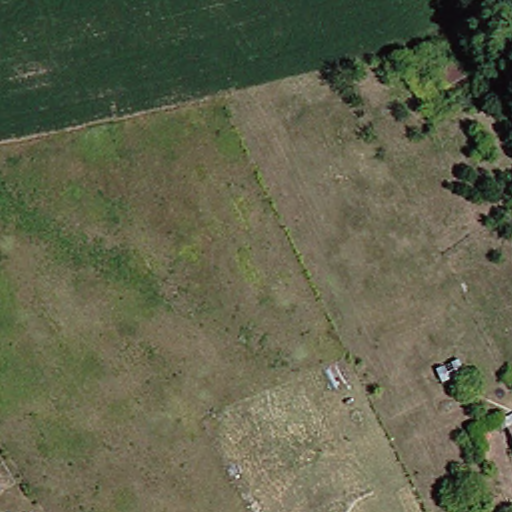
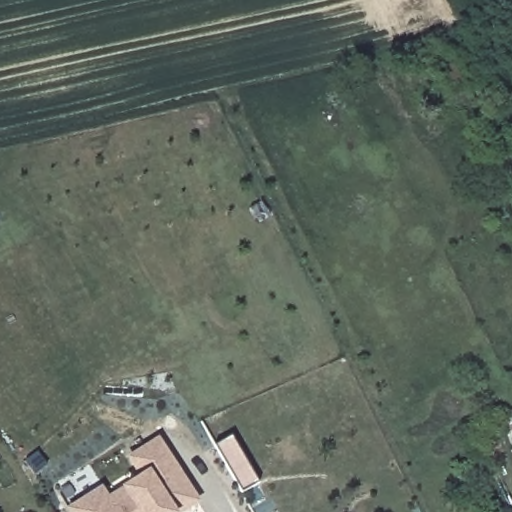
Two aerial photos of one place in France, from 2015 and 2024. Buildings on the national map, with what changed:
new [(234,437),(261,485),(244,494),(217,447),(234,437)]
new [(108,501),(144,477),(131,457),(158,440),(182,477),(188,485),(197,500),(179,512),(72,512),(71,511),(101,491),(108,501)]

